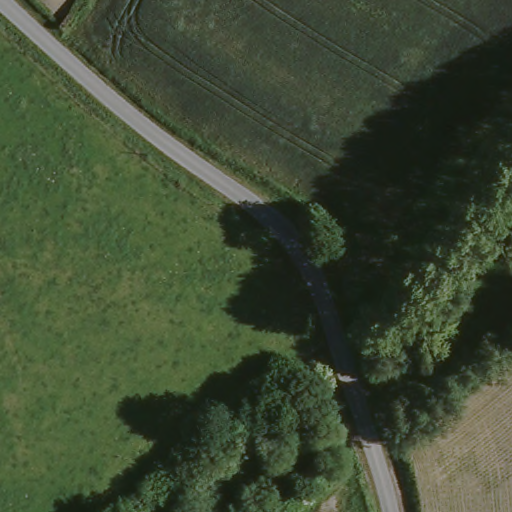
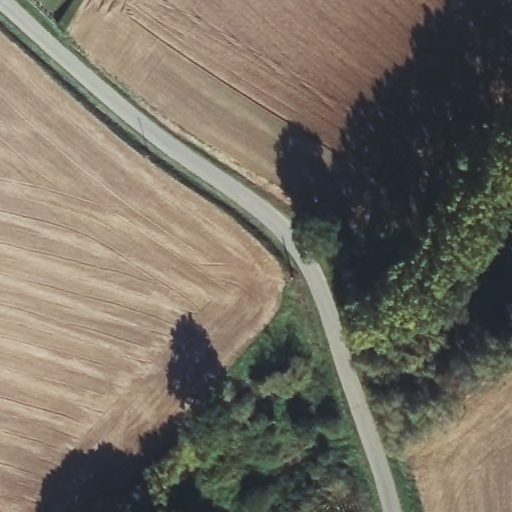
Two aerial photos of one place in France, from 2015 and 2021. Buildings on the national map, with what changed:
[]

